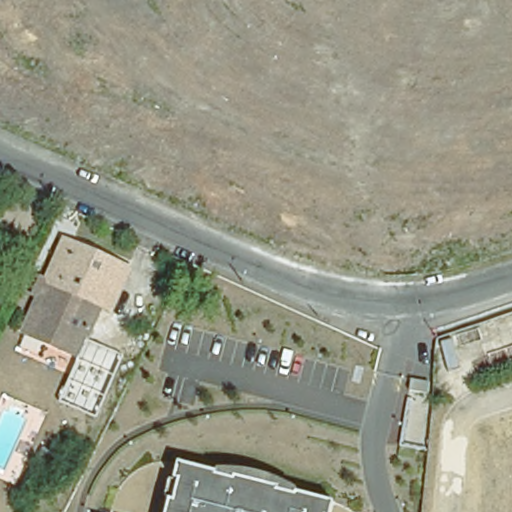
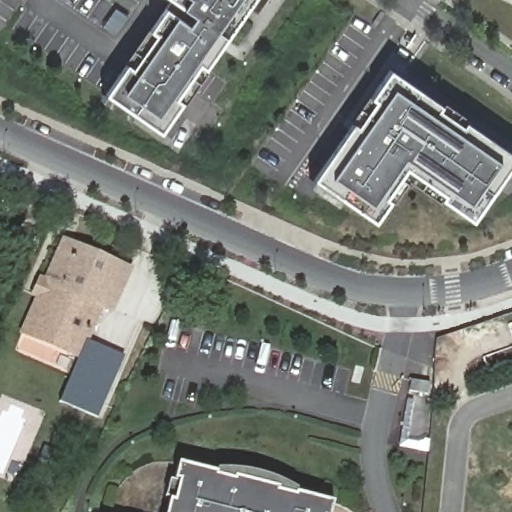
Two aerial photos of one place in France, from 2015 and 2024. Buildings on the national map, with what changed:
new [(108,94),(174,0),(255,0),(162,132),(108,94)]
new [(474,219),(408,175),(376,221),(313,177),(390,67),(512,153),(512,164),(474,219)]
unchanged [(130,273),(110,317),(100,312),(88,340),(112,350),(90,408),(65,398),(81,357),(21,330),(39,285),(46,288),(66,246),(130,273)]
demolished [(435,367),(435,338),(468,327),(475,346),(452,353),(450,377),(434,374),(435,367)]
unchanged [(179,462),(215,472),(229,469),(246,469),(270,474),(287,482),(298,492),(336,502),(333,512),(166,512),(179,462)]

